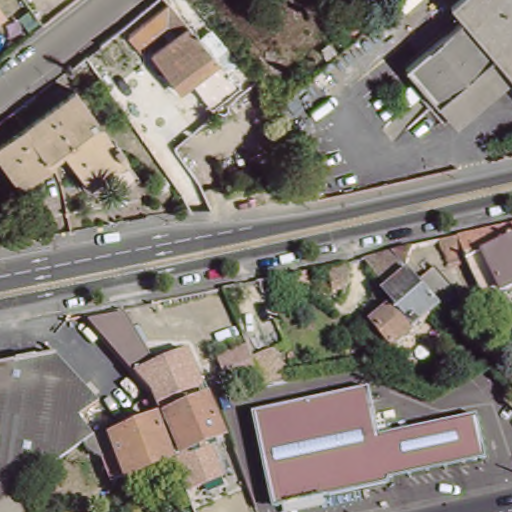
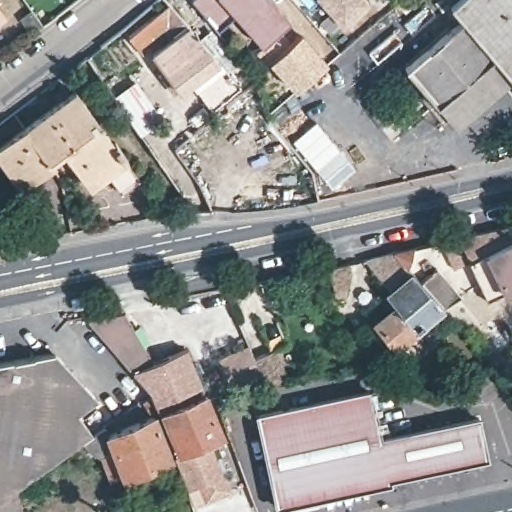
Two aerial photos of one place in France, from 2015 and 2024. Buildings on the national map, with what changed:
unchanged [(185,94),(153,59),(178,39),(168,26),(153,39),(158,45),(148,53),(133,35),(170,4),(167,1),(168,0),(181,0),(195,16),(186,23),(191,28),(221,61),(244,87),(230,99),(209,74),(185,94)]
new [(281,30),(291,40),(300,33),(326,61),(293,90),(267,61),(266,65),(255,50),(260,43),(232,14),(216,29),(191,0),(271,0),(290,21),(281,30)]
unchanged [(346,25),(325,0),(369,0),(372,3),(346,25)]
unchanged [(503,57),(439,106),(437,104),(433,108),(422,92),(426,89),(408,66),(465,17),(452,0),(512,0),(512,68),(503,57)]
unchanged [(0,4),(5,11),(0,14),(0,4)]
unchanged [(122,159),(86,186),(57,147),(46,155),(23,124),(72,87),(122,159)]
unchanged [(0,141),(23,124),(46,155),(50,161),(18,185),(0,159),(0,141)]
unchanged [(493,298),(483,276),(466,235),(512,224),(512,289),(493,298)]
unchanged [(433,267),(457,295),(439,309),(389,349),(370,325),(393,307),(383,294),(388,290),(372,270),(391,254),(410,250),(403,268),(408,273),(416,282),(433,267)]
unchanged [(131,308),(157,359),(191,344),(210,395),(224,437),(210,444),(224,479),(189,495),(175,455),(121,482),(104,432),(155,407),(133,371),(93,314),(131,308)]
unchanged [(35,480),(0,430),(0,378),(26,360),(55,354),(102,402),(81,417),(96,437),(67,458),(35,480)]
unchanged [(0,378),(0,364),(26,360),(0,378)]
unchanged [(369,397),(379,444),(477,424),(485,463),(387,483),(388,489),(277,512),(257,421),(369,397)]
unchanged [(17,492),(0,504),(0,430),(35,480),(17,492)]
unchanged [(3,512),(0,512),(0,504),(5,511),(3,512)]

